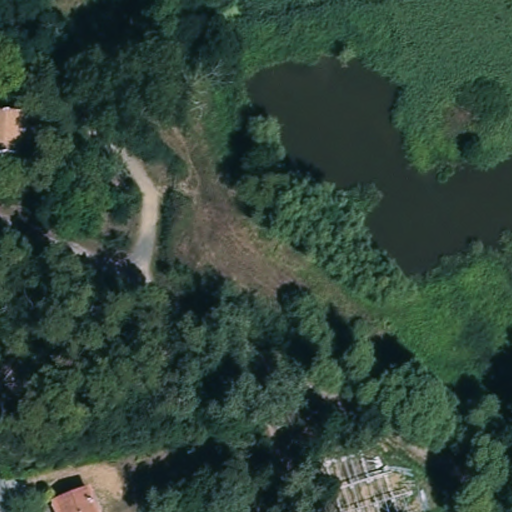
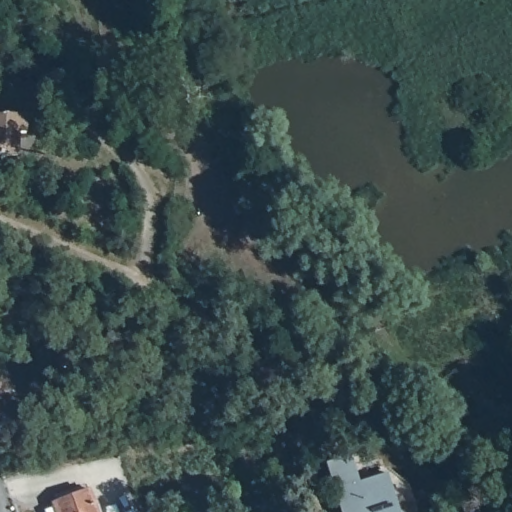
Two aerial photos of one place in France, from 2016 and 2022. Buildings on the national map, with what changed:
unchanged [(27,118),(27,137),(21,136),(21,156),(0,155),(0,117),(27,118)]
new [(358,481),(386,472),(398,512),(341,512),(325,461),(349,454),(358,481)]
unchanged [(97,512),(57,512),(53,501),(90,490),(97,512)]

